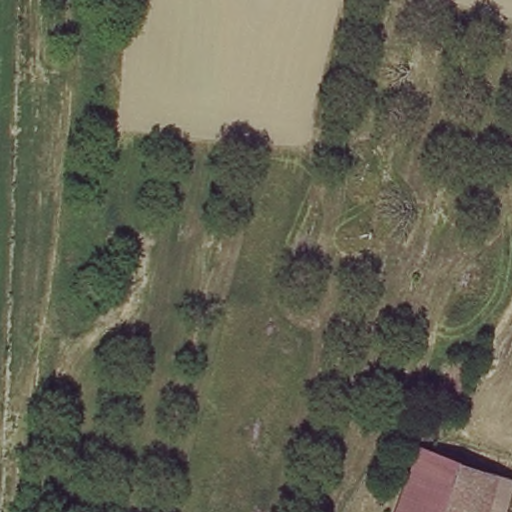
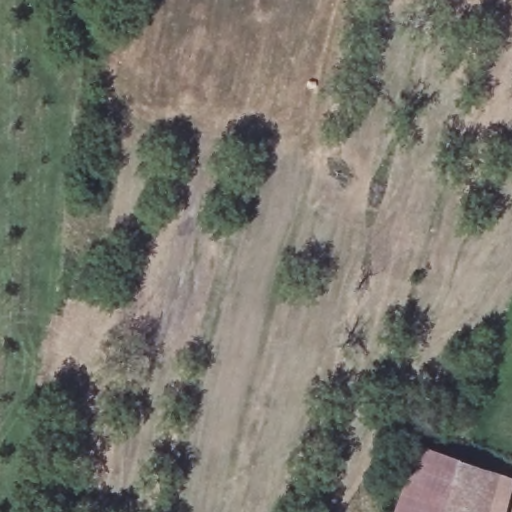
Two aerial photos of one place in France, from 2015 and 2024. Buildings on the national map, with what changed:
unchanged [(418,452),(512,478),(512,482),(507,501),(503,512),(399,512),(418,452)]

